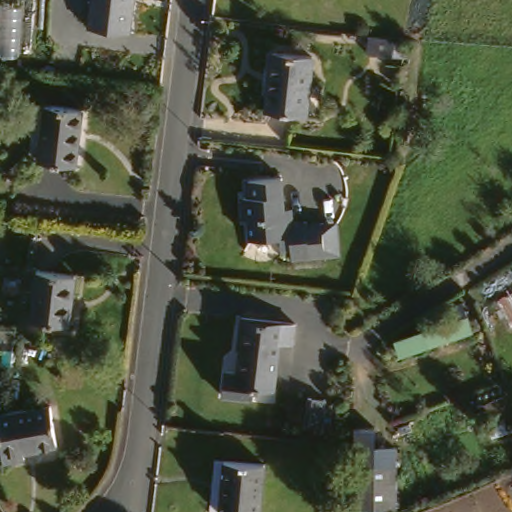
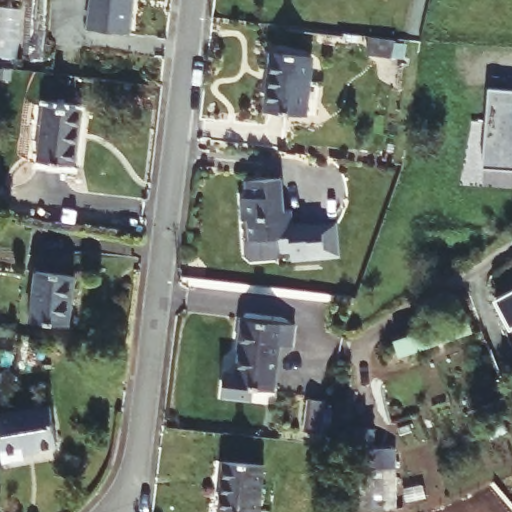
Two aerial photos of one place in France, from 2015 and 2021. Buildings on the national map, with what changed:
unchanged [(131,0),(127,34),(87,30),(91,0),(131,0)]
unchanged [(404,43),(402,58),(367,54),(368,39),(404,43)]
unchanged [(310,85),(306,115),(265,110),(272,53),(312,57),(310,85)]
new [(490,89),(512,91),(512,172),(484,169),(490,89)]
unchanged [(42,158),(49,102),(87,107),(79,163),(42,158)]
unchanged [(325,260),(292,262),(291,253),(280,254),(280,240),(250,242),(248,222),(244,222),(242,200),(248,200),(247,183),(280,180),(283,217),(288,217),(290,226),(305,225),(306,227),(322,226),(336,225),(339,259),(325,260)]
unchanged [(30,322),(36,273),(75,278),(68,328),(30,322)]
unchanged [(500,296),(512,290),(512,319),(500,296)]
unchanged [(391,339),(463,312),(472,331),(397,355),(391,339)]
unchanged [(225,373),(237,375),(240,352),(237,351),(241,320),(294,327),(292,347),(280,345),(273,392),(252,389),(250,401),(222,397),(225,373)]
unchanged [(305,429),(307,401),(325,403),(322,431),(305,429)]
unchanged [(55,448),(23,453),(24,461),(3,464),(0,447),(0,417),(49,408),(55,448)]
unchanged [(264,467),(259,512),(219,512),(224,462),(264,467)]
unchanged [(395,510),(355,509),(355,468),(395,468),(395,510)]

